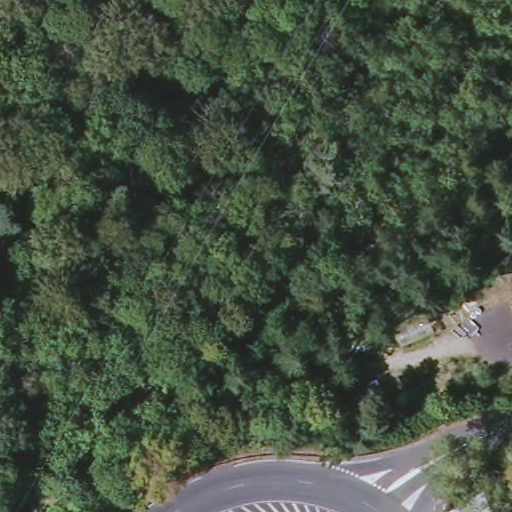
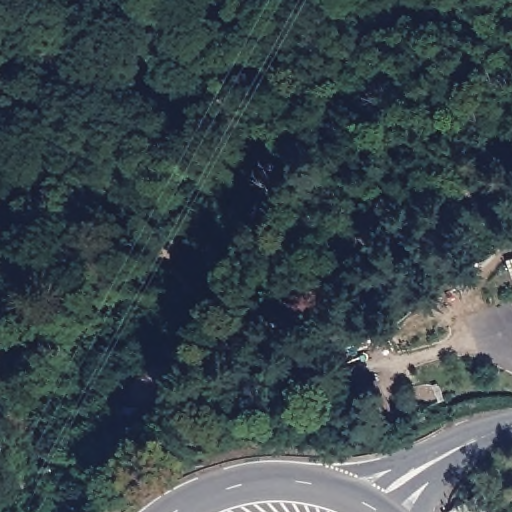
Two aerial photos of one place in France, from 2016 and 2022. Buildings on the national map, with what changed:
unchanged [(327,410),(341,399),(351,411),(337,422),(327,410)]
unchanged [(493,510),(491,512),(454,512),(483,495),(493,510)]

